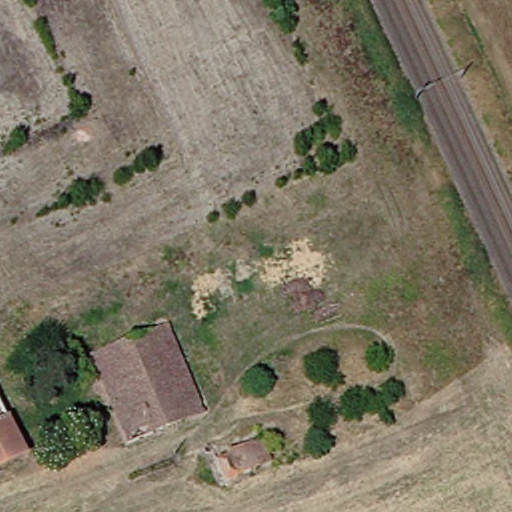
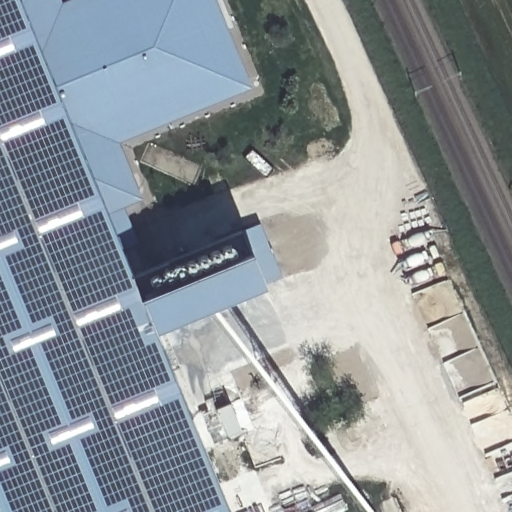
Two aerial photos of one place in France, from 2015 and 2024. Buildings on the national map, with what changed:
new [(0,0),(17,0),(227,512),(0,512),(0,0)]
new [(66,0),(216,0),(252,88),(120,142),(142,200),(124,206),(139,244),(121,252),(17,0),(61,0),(62,2),(66,0)]
new [(282,277),(262,285),(153,331),(139,296),(130,275),(260,224),(282,277)]
demolished [(163,325),(200,419),(124,444),(84,357),(163,325)]
demolished [(39,377),(45,387),(32,393),(26,383),(39,377)]
demolished [(0,463),(0,421),(17,454),(0,463)]
demolished [(63,432),(69,444),(50,451),(46,440),(63,432)]
demolished [(257,434),(270,466),(221,488),(207,453),(257,434)]

